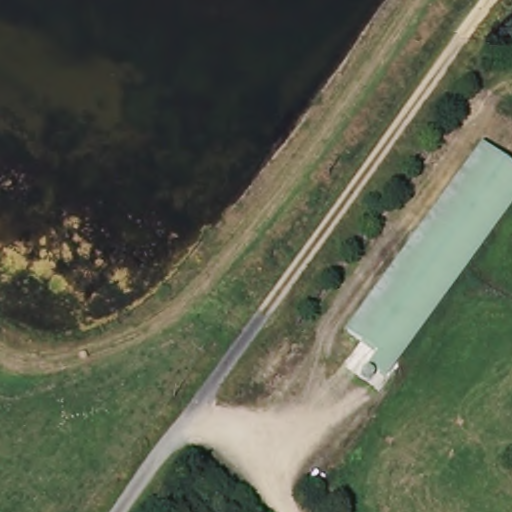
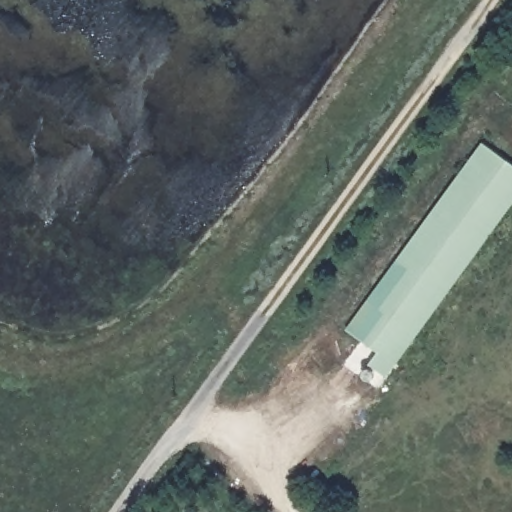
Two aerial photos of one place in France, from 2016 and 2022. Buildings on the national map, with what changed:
unchanged [(382,281),(482,143),(488,147),(387,286),(352,335),(346,331),(382,281)]
unchanged [(369,366),(377,353),(352,335),(387,286),(488,147),(512,165),(512,194),(422,317),(390,362),(395,365),(385,377),(369,366)]
unchanged [(512,194),(512,203),(426,321),(395,365),(390,362),(422,317),(512,194)]

